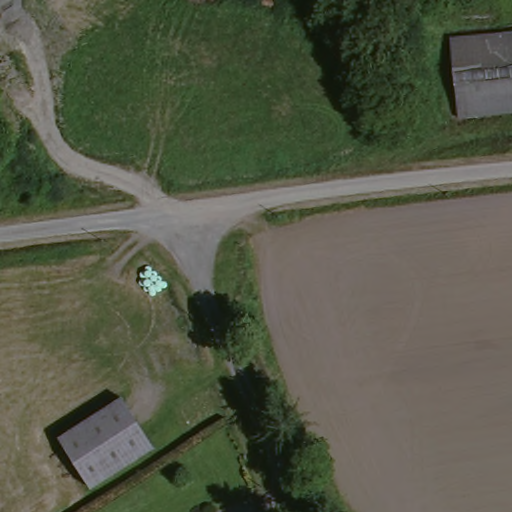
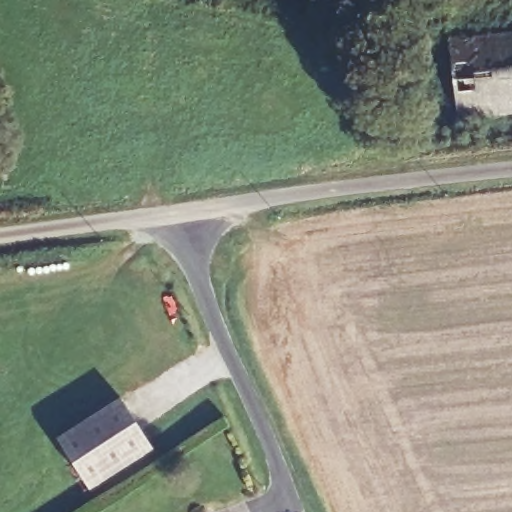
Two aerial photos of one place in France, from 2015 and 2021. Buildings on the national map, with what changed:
unchanged [(456,119),(446,37),(512,31),(512,113),(456,119)]
unchanged [(59,438),(119,397),(154,449),(93,492),(59,438)]

